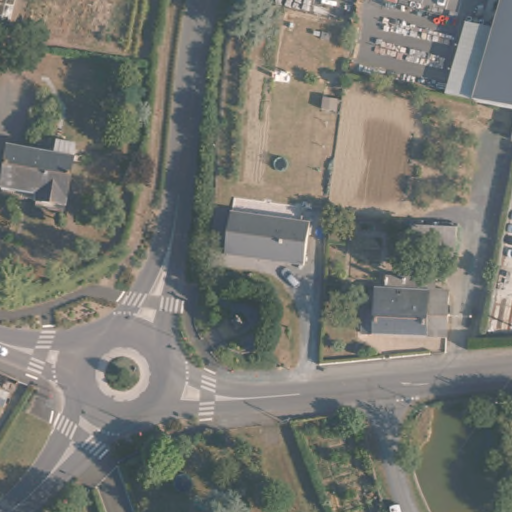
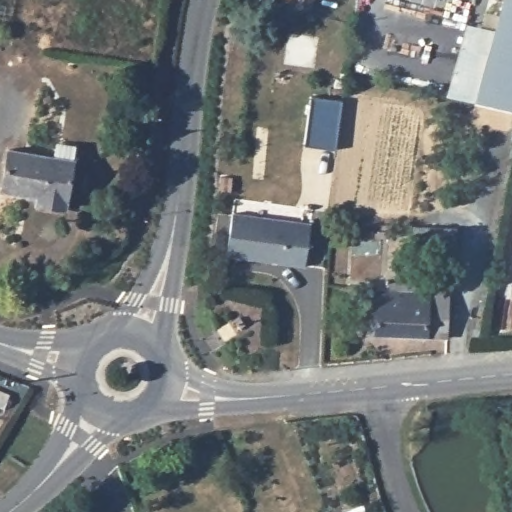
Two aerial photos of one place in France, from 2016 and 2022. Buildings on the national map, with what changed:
unchanged [(505,0),(512,0),(512,110),(495,106),(481,103),(497,33),(505,0)]
unchanged [(497,33),(481,103),(446,96),(464,24),(497,33)]
new [(311,95),(342,100),(335,150),(304,146),(311,95)]
unchanged [(79,160),(68,211),(48,207),(50,198),(7,189),(16,147),(79,160)]
unchanged [(308,224),(300,266),(223,251),(230,209),(308,224)]
unchanged [(436,229),(454,230),(454,261),(436,262),(427,261),(427,248),(410,247),(410,230),(423,229),(436,229)]
unchanged [(379,293),(389,294),(390,277),(430,280),(429,293),(452,295),(449,340),(376,335),(359,334),(360,315),(377,316),(379,293)]
unchanged [(12,392),(5,411),(0,408),(0,387),(12,392)]

